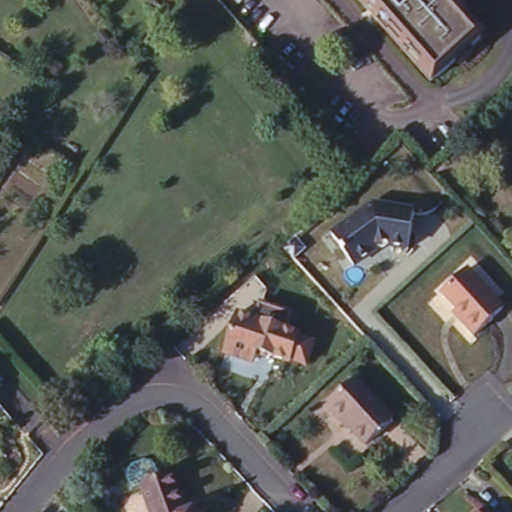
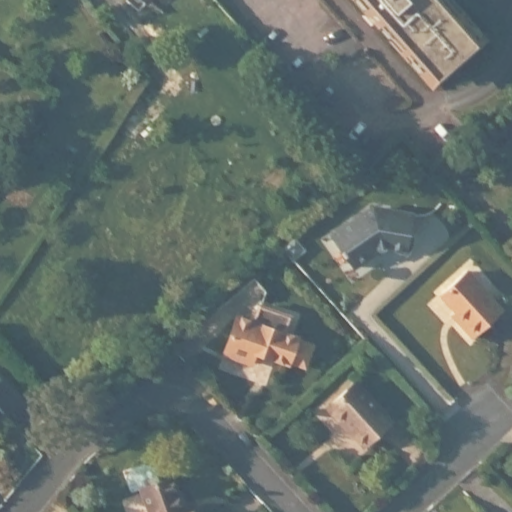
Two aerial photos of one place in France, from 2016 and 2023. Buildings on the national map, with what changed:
unchanged [(431,79),(361,0),(441,0),(476,39),(431,79)]
unchanged [(377,195),(420,204),(413,250),(387,243),(361,262),(335,226),(377,195)]
unchanged [(463,311),(448,293),(475,270),(509,310),(478,336),(466,322),(458,314),(463,311)]
unchanged [(251,319),(259,303),(288,315),(281,331),(312,338),(304,366),(256,351),(250,364),(222,353),(234,313),(251,319)]
unchanged [(356,377),(391,416),(365,441),(345,419),(343,421),(327,403),(356,377)]
unchanged [(180,512),(144,512),(136,492),(168,480),(180,512)]
unchanged [(475,506),(481,512),(469,512),(475,506)]

